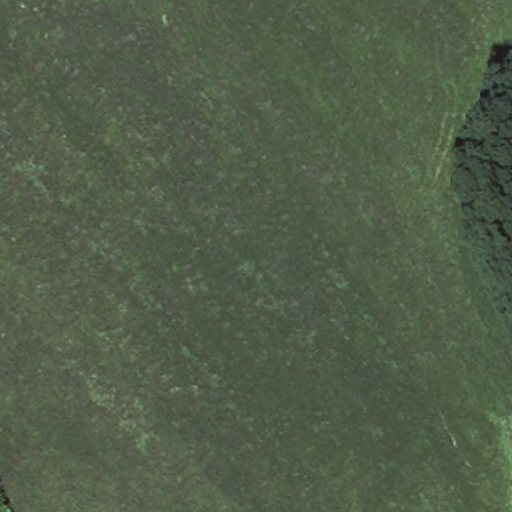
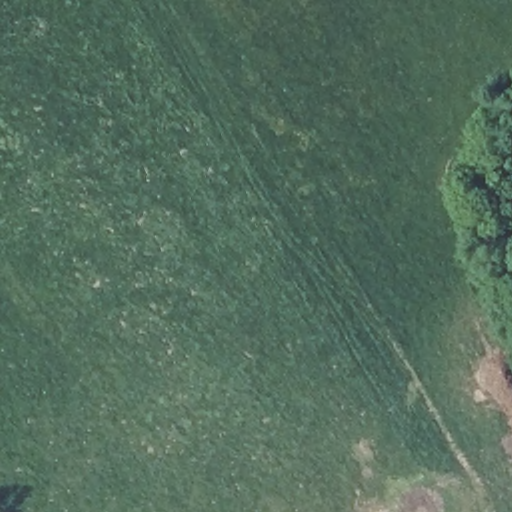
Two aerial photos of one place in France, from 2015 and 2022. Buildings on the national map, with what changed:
[]

